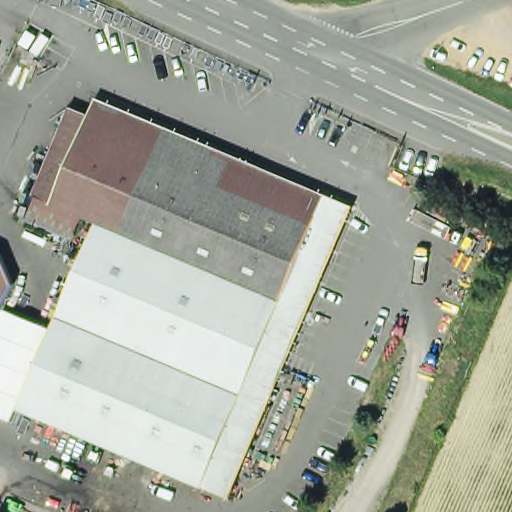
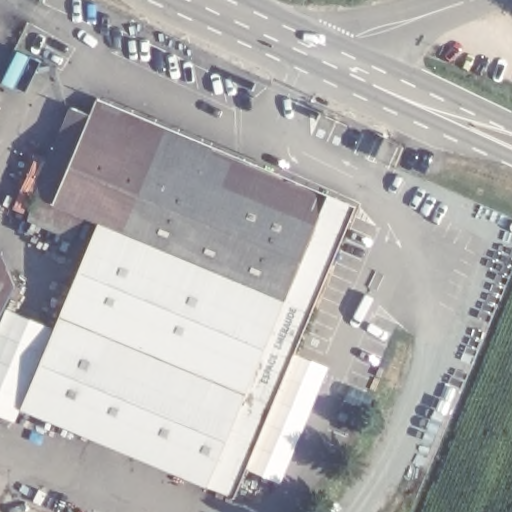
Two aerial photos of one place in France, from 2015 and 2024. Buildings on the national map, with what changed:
unchanged [(87,244),(13,209),(36,144),(51,148),(68,107),(92,116),(98,98),(357,206),(237,501),(16,410),(87,244)]
unchanged [(9,255),(20,286),(0,327),(0,250),(9,255)]

